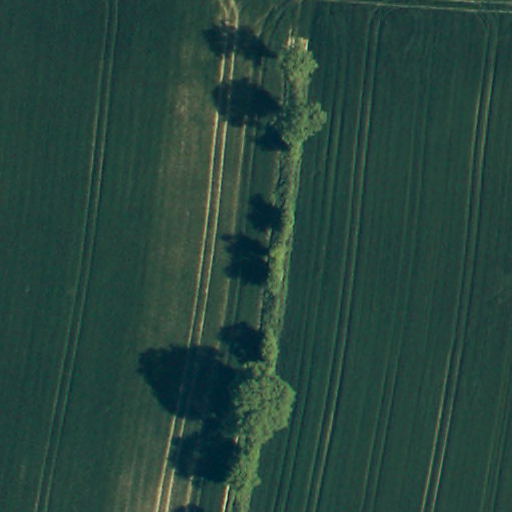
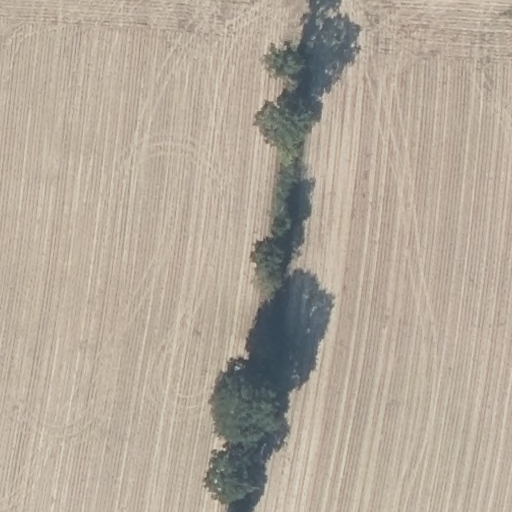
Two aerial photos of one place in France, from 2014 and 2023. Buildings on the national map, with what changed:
[]

